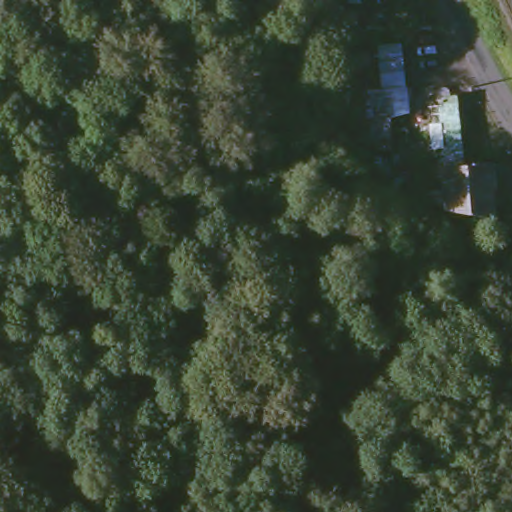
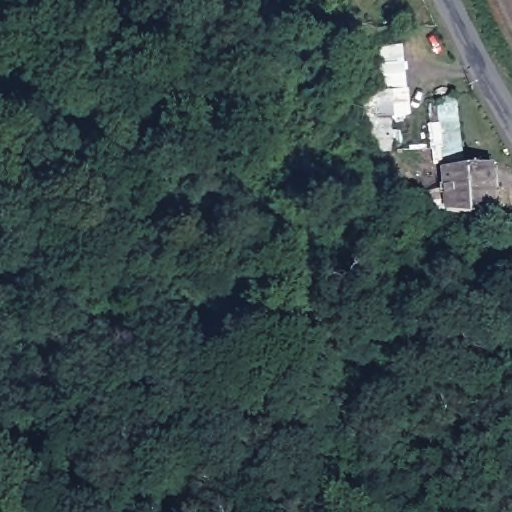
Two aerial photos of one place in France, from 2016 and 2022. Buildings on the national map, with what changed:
unchanged [(446,211),(434,98),(452,96),(462,164),(490,167),(494,220),(446,211)]
unchanged [(387,100),(389,134),(370,134),(367,100),(387,100)]

